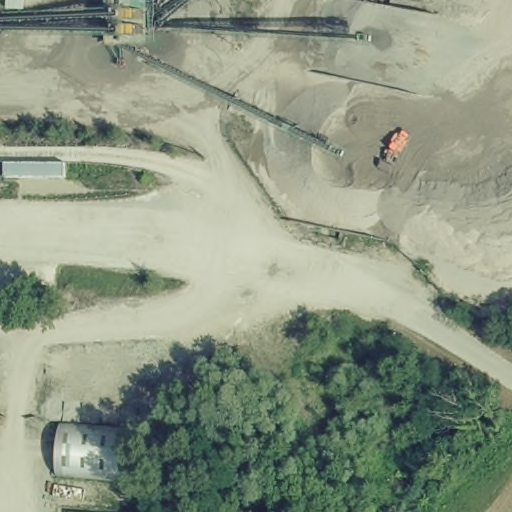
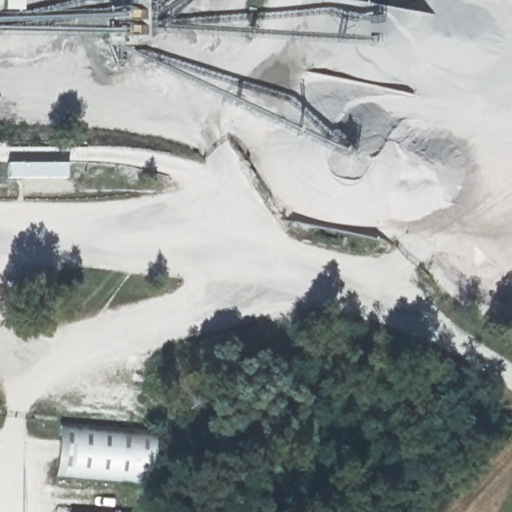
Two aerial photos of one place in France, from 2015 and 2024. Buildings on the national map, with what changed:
unchanged [(144,46),(104,47),(105,0),(145,0),(144,46)]
unchanged [(56,427),(155,433),(151,482),(54,476),(56,427)]

